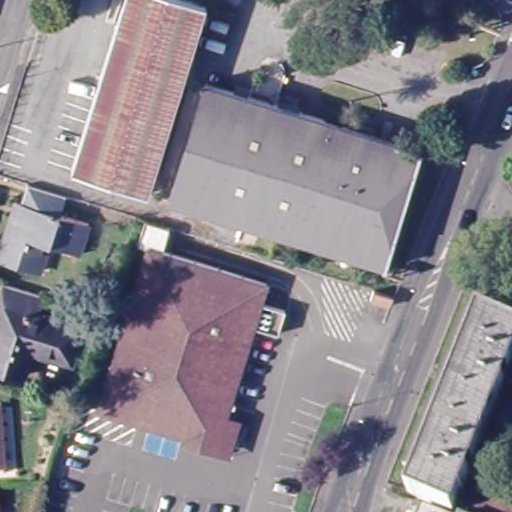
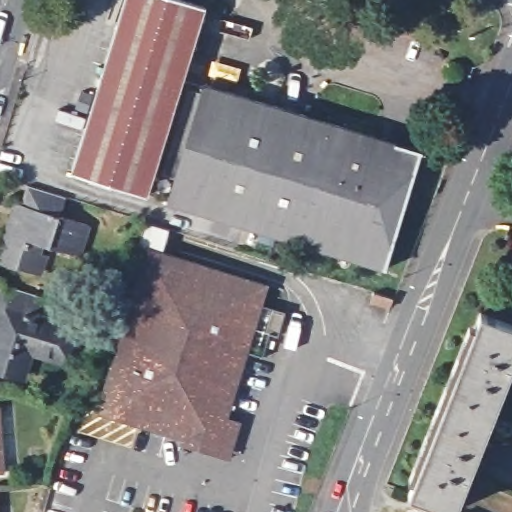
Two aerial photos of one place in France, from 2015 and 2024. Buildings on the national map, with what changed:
unchanged [(147,195),(72,173),(126,0),(181,0),(205,8),(147,195)]
unchanged [(201,93),(204,85),(420,151),(382,269),(169,202),(176,176),(162,171),(188,90),(201,93)]
unchanged [(68,198),(62,217),(89,224),(80,255),(44,245),(35,272),(0,261),(0,247),(15,202),(23,205),(29,186),(68,198)]
unchanged [(221,457),(210,454),(174,444),(176,435),(92,411),(142,244),(132,241),(140,217),(166,225),(159,249),(263,280),(257,298),(280,305),(273,328),(251,322),(222,415),(233,418),(221,457)]
unchanged [(390,297),(393,298),(390,308),(371,302),(374,292),(390,297)]
unchanged [(46,306),(40,325),(83,338),(72,372),(33,360),(25,385),(0,376),(0,332),(6,313),(0,311),(0,309),(5,293),(46,306)]
unchanged [(512,331),(512,368),(454,512),(439,512),(414,503),(405,500),(480,319),(512,331)]
unchanged [(4,475),(0,475),(0,422),(4,475)]
unchanged [(414,503),(439,512),(410,512),(414,503)]

